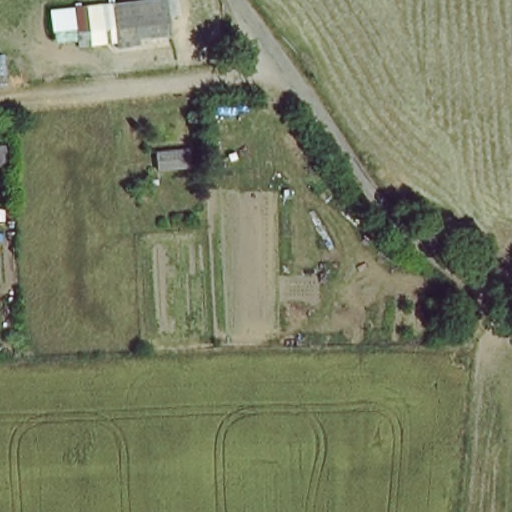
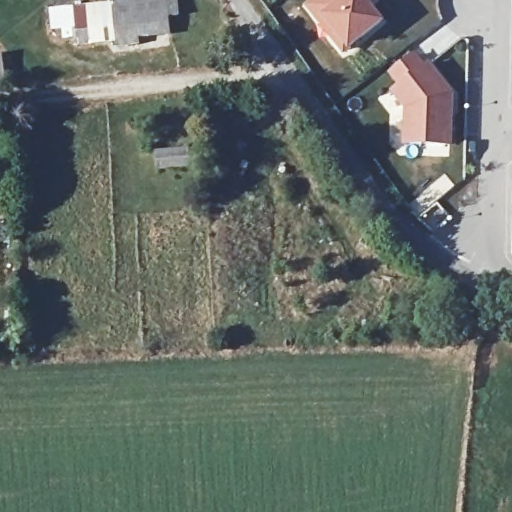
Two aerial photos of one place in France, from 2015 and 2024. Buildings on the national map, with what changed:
unchanged [(73,12),(88,10),(88,1),(103,0),(168,0),(173,32),(77,42),(73,12)]
new [(315,0),(363,0),(383,31),(345,58),(307,6),(315,0)]
new [(452,95),(452,151),(406,152),(405,109),(393,93),(397,91),(388,77),(418,52),(452,95)]
unchanged [(192,152),(193,170),(157,172),(156,154),(192,152)]
unchanged [(0,156),(9,156),(9,174),(0,174),(0,156)]

